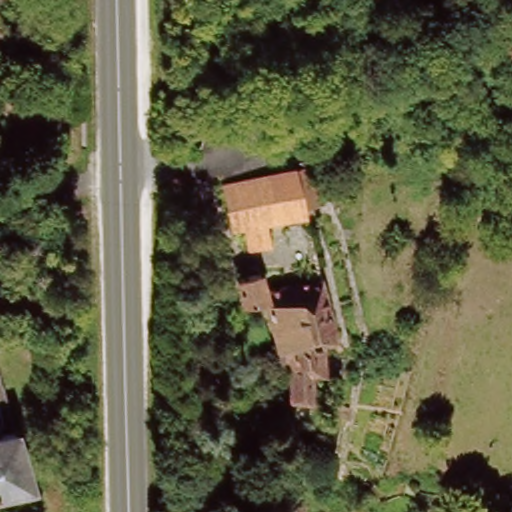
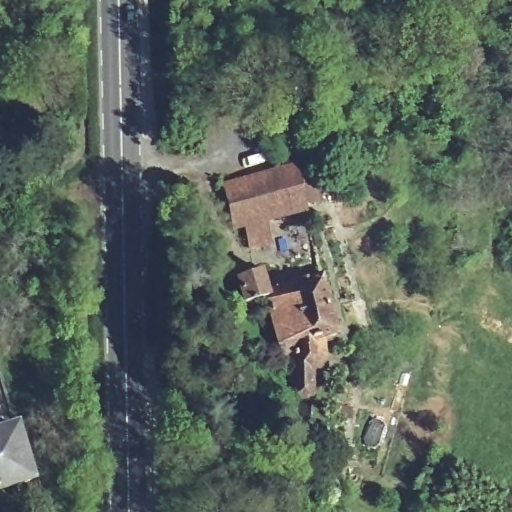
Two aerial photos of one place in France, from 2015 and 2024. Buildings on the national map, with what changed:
unchanged [(218,183),(304,164),(312,200),(297,204),(298,209),(261,219),(267,241),(246,247),(238,221),(227,224),(218,183)]
unchanged [(264,298),(246,303),(239,279),(260,272),(267,295),(323,281),(337,339),(316,344),(319,370),(312,370),(307,402),(288,399),(291,380),(290,360),(282,360),(264,298)]
unchanged [(11,428),(25,481),(0,488),(0,431),(11,428)]

